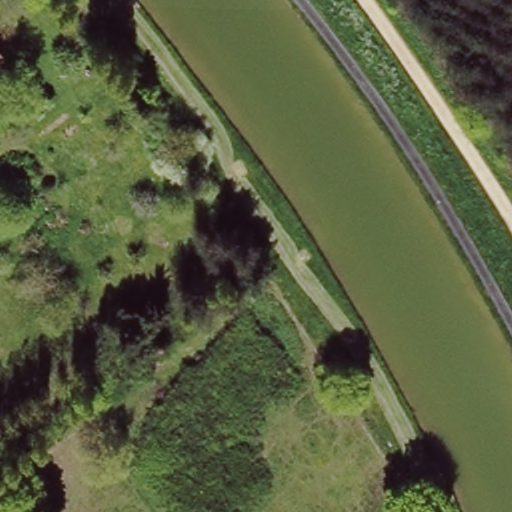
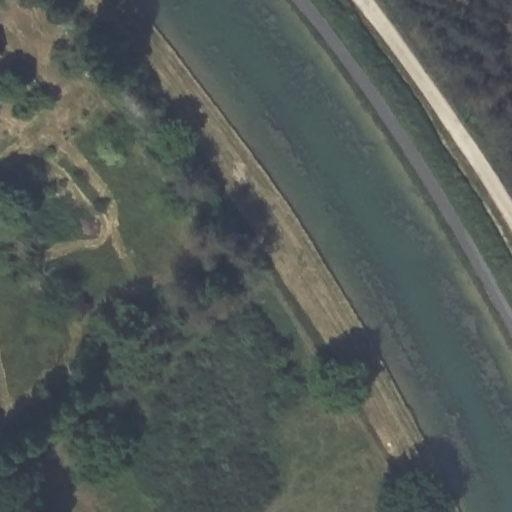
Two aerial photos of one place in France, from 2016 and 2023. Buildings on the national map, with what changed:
unchanged [(4,54),(0,58),(0,49),(4,54)]

